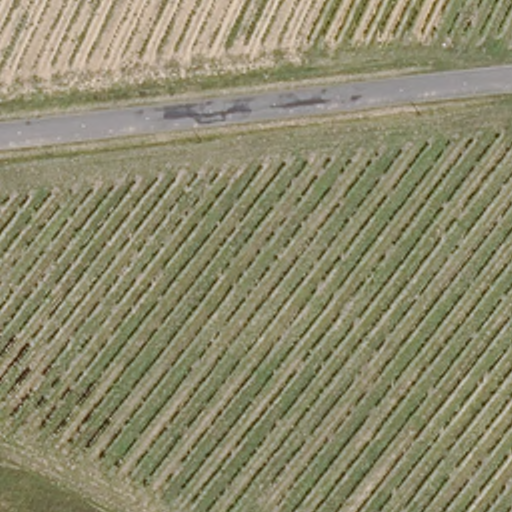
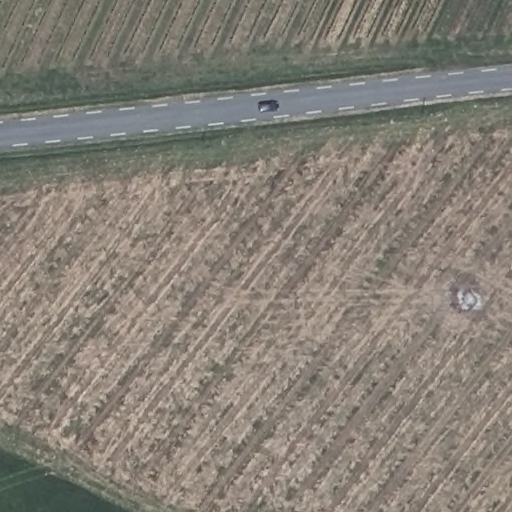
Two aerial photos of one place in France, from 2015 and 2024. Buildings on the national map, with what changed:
[]

